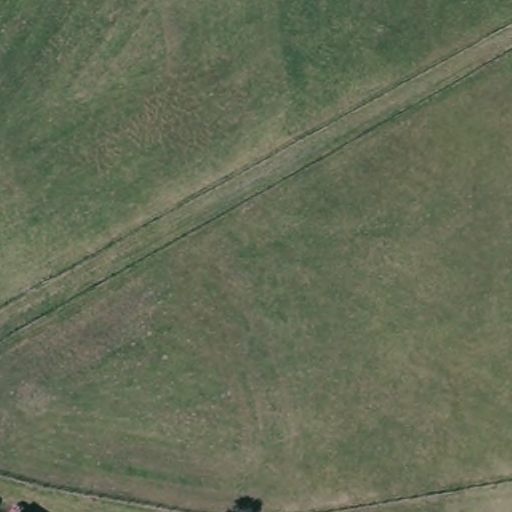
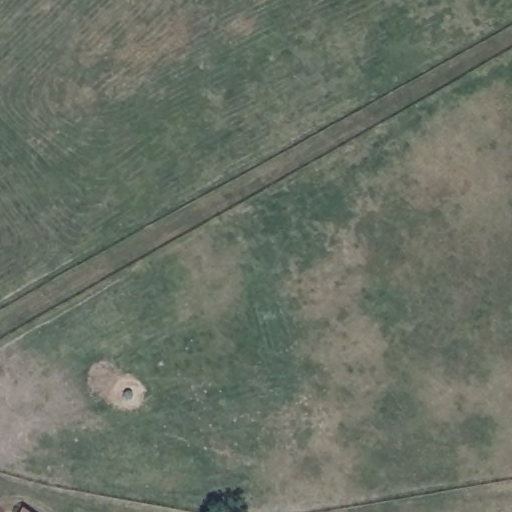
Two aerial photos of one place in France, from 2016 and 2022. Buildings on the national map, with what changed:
unchanged [(24,512),(19,512),(20,510),(24,512)]

